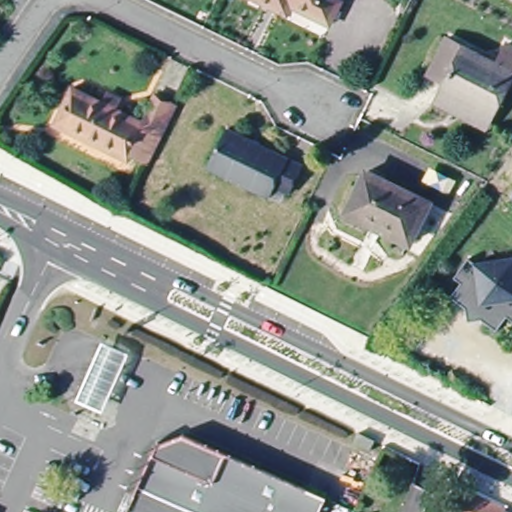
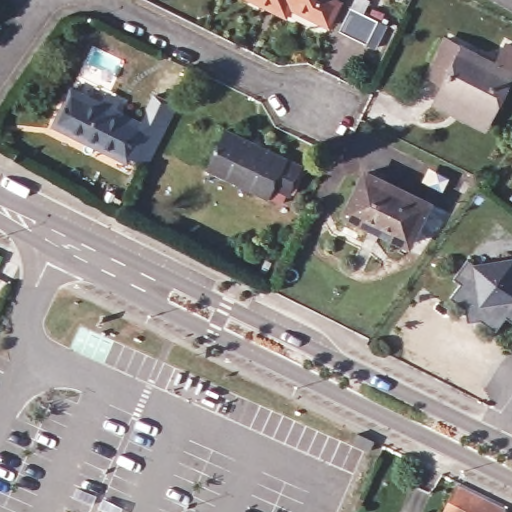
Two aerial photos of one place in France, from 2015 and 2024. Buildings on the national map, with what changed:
unchanged [(330,25),(291,6),(287,15),(256,0),(338,0),(341,1),(330,25)]
new [(352,7),(379,20),(368,43),(341,30),(352,7)]
unchanged [(450,79),(433,70),(452,34),(502,59),(512,39),(512,83),(497,113),(495,111),(489,122),(442,99),(448,87),(446,86),(450,79)]
unchanged [(125,161),(123,166),(49,130),(67,93),(98,108),(103,99),(115,105),(111,114),(137,127),(151,100),(173,111),(160,137),(144,170),(125,161)]
unchanged [(210,163),(226,130),(303,167),(290,194),(276,187),(270,197),(234,180),(208,167),(210,163)]
unchanged [(350,206),(366,172),(430,203),(410,244),(381,230),(347,214),(350,206)]
unchanged [(512,195),(512,199),(510,198),(512,195)]
unchanged [(512,316),(507,312),(497,326),(481,315),(468,317),(466,303),(451,292),(461,278),(454,272),(468,254),(485,266),(495,264),(494,258),(512,255),(512,275),(510,275),(512,285),(512,286),(512,316)]
unchanged [(371,451),(354,443),(358,433),(375,441),(371,451)]
demolished [(139,495),(161,445),(188,435),(331,496),(324,512),(132,512),(139,495)]
unchanged [(506,512),(450,512),(447,510),(463,479),(512,503),(506,512)]
unchanged [(511,506),(512,507),(512,512),(508,512),(511,506)]

